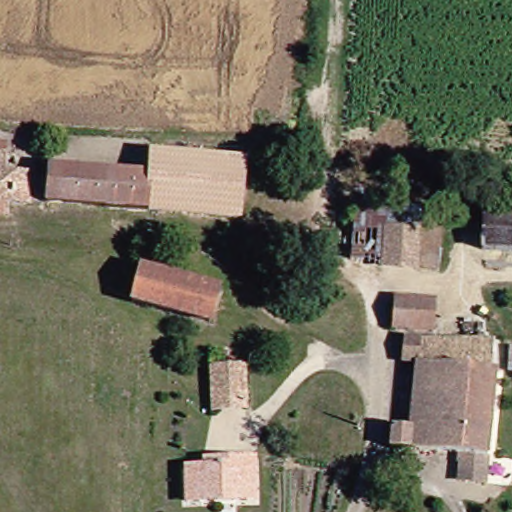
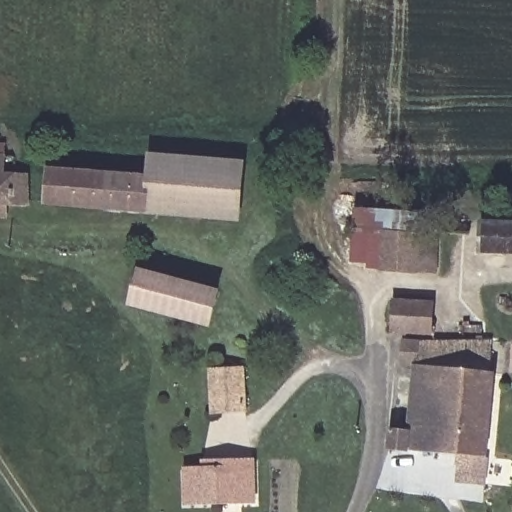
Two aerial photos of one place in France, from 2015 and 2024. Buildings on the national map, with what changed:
unchanged [(41,206),(44,171),(146,179),(147,158),(234,166),(232,221),(41,206)]
unchanged [(7,160),(5,178),(18,179),(16,208),(0,207),(0,160),(7,160)]
unchanged [(351,266),(355,223),(388,223),(378,237),(376,269),(365,268),(351,266)]
unchanged [(431,226),(427,272),(376,269),(378,237),(388,223),(431,226)]
unchanged [(472,254),(475,226),(512,227),(512,256),(501,255),(472,254)]
unchanged [(137,274),(214,295),(203,333),(127,313),(137,274)]
unchanged [(385,306),(424,307),(422,337),(382,334),(385,306)]
unchanged [(454,480),(455,468),(457,455),(388,452),(388,432),(407,433),(410,364),(397,363),(398,343),(479,349),(486,358),(480,470),(480,481),(454,480)]
unchanged [(512,378),(505,378),(507,351),(512,352),(512,378)]
unchanged [(207,376),(237,376),(236,418),(207,416),(207,376)]
unchanged [(180,473),(193,472),(195,462),(243,465),(241,506),(175,504),(180,473)]

